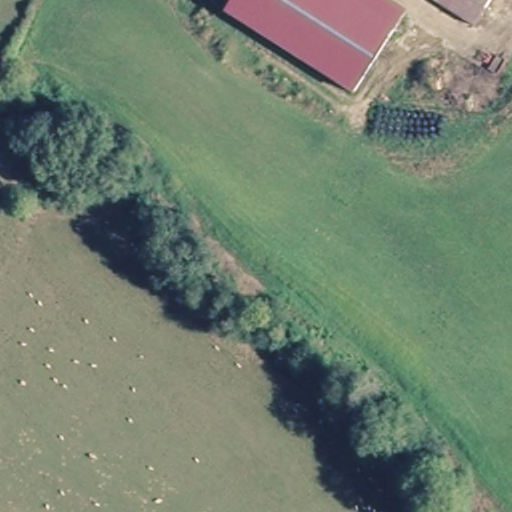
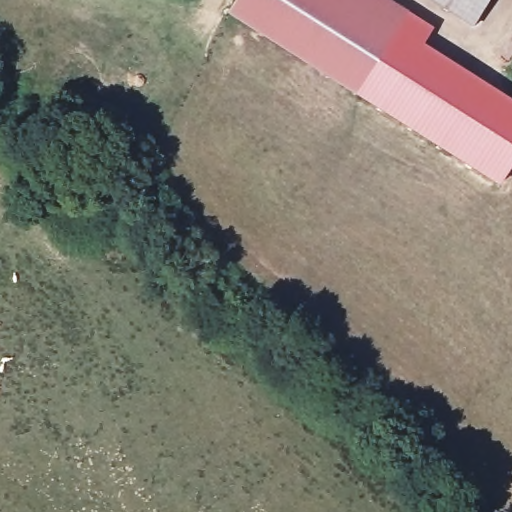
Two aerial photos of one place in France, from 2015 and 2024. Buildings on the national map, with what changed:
unchanged [(406,13),(354,96),(226,14),(236,0),(385,0),(406,13)]
unchanged [(475,31),(425,0),(494,0),(475,31)]
new [(432,28),(422,44),(512,101),(512,165),(498,186),(354,96),(406,13),(432,28)]

